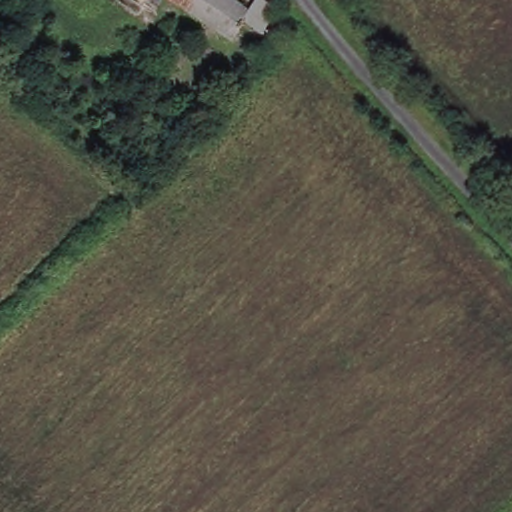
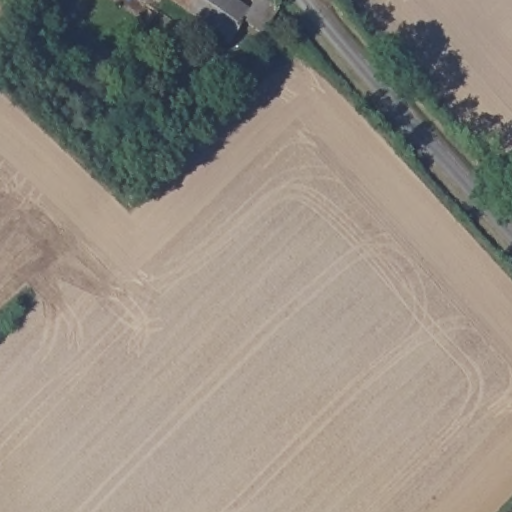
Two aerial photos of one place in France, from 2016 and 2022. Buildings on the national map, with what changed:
unchanged [(252,10),(258,0),(272,0),(284,8),(264,37),(247,25),(236,41),(175,0),(237,0),(252,10)]

